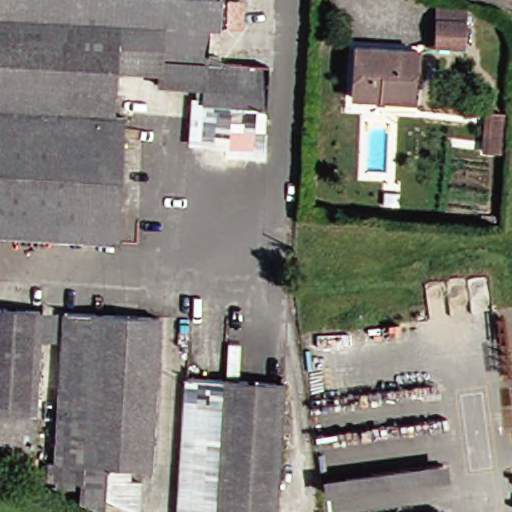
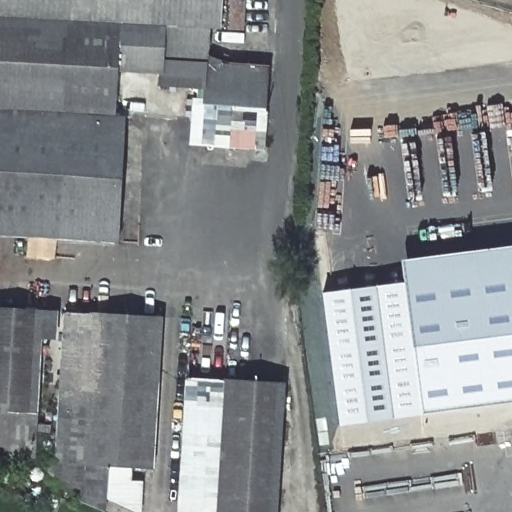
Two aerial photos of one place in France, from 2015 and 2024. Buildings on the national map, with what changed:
unchanged [(187,26),(203,27),(202,55),(216,57),(215,64),(262,67),(259,107),(256,107),(254,132),(257,132),(257,147),(175,141),(178,98),(182,99),(183,86),(153,84),(155,71),(112,69),(110,90),(108,118),(119,118),(112,243),(0,237),(0,0),(189,0),(187,26)]
unchanged [(189,0),(215,0),(214,9),(221,9),(222,1),(236,2),(235,29),(213,28),(203,27),(187,26),(189,0)]
demolished [(431,14),(461,15),(459,54),(429,52),(431,14)]
demolished [(407,51),(404,100),(369,99),(342,97),(345,47),(407,51)]
demolished [(500,151),(483,150),(486,115),(503,116),(500,151)]
new [(512,289),(406,302),(404,284),(401,260),(512,247),(512,289)]
new [(404,284),(406,302),(420,414),(338,424),(325,294),(404,284)]
new [(406,302),(512,289),(512,402),(420,414),(411,345),(406,302)]
unchanged [(34,340),(30,411),(28,458),(0,456),(0,309),(36,311),(34,311),(34,340)]
unchanged [(48,482),(58,318),(84,320),(85,318),(155,323),(146,474),(124,472),(123,486),(135,487),(134,512),(117,512),(99,504),(99,512),(85,512),(73,507),(74,494),(49,491),(50,482),(48,482)]
unchanged [(173,512),(181,379),(279,385),(271,512),(173,512)]

